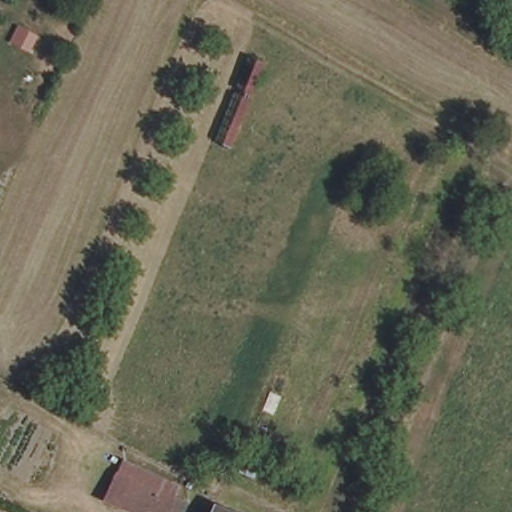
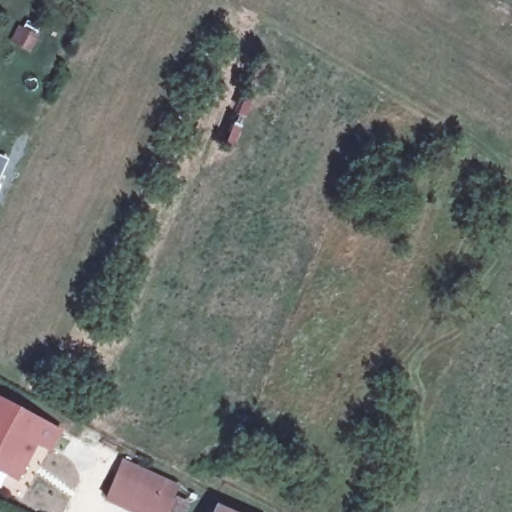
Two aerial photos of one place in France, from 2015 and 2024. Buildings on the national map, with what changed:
new [(60,432),(52,447),(37,440),(17,478),(0,469),(0,402),(60,432)]
unchanged [(110,450),(128,457),(119,479),(177,500),(173,512),(109,512),(100,508),(97,502),(90,497),(100,476),(110,450)]
unchanged [(185,483),(177,500),(119,479),(128,457),(185,483)]

